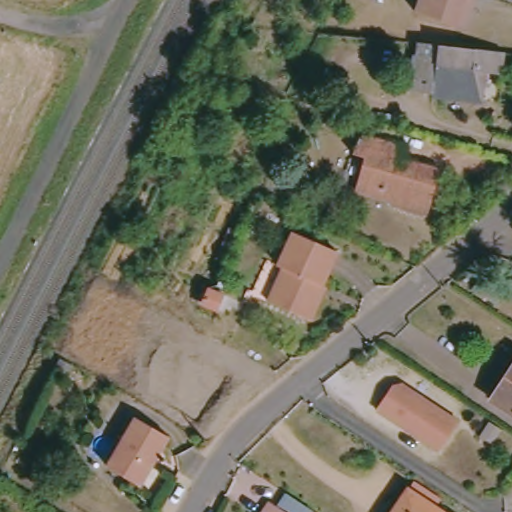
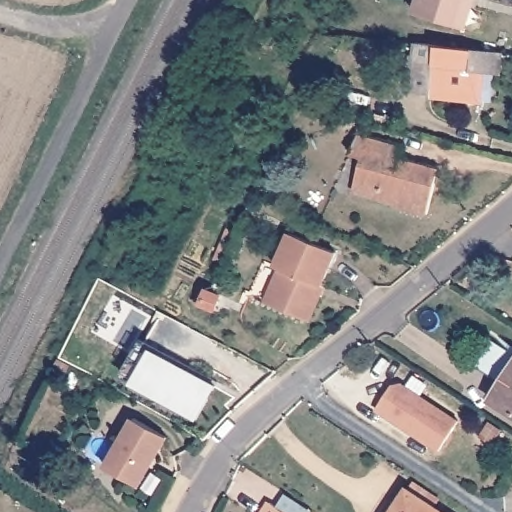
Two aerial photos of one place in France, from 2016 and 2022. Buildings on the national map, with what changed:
unchanged [(420,13),(424,0),(483,0),(482,1),(472,30),(460,27),(420,13)]
unchanged [(511,54),(510,74),(491,72),(489,104),(437,100),(437,94),(419,93),(421,57),(425,57),(425,45),(511,54)]
unchanged [(362,180),(372,156),(360,152),(370,131),(403,145),(397,160),(382,187),(362,180)]
unchanged [(446,181),(427,222),(397,209),(399,205),(383,198),(387,190),(382,187),(397,160),(446,181)]
unchanged [(272,300),(277,294),(289,269),(284,266),(300,231),(345,256),(329,287),(324,286),(320,293),(328,298),(321,313),(315,323),(272,300)]
unchanged [(222,291),(215,305),(215,306),(196,297),(197,296),(203,282),(222,291)]
new [(134,381),(154,346),(218,383),(199,420),(134,381)]
unchanged [(398,385),(409,383),(465,421),(445,450),(382,408),(398,385)]
unchanged [(512,384),(512,412),(499,404),(512,384)]
unchanged [(162,457),(157,455),(141,482),(112,467),(140,416),(175,435),(162,457)]
unchanged [(412,494),(439,512),(401,512),(412,494)]
unchanged [(270,506),(280,512),(266,512),(270,506)]

